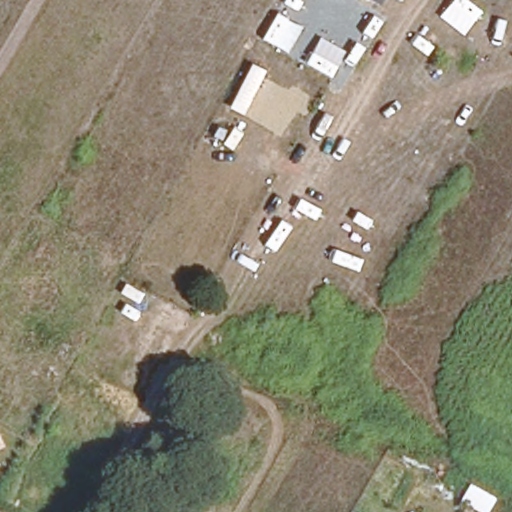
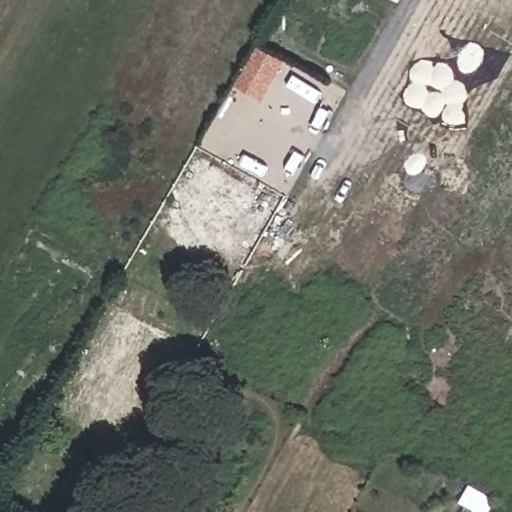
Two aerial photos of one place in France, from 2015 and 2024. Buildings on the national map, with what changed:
new [(258,46),(285,62),(262,102),(235,86),(258,46)]

